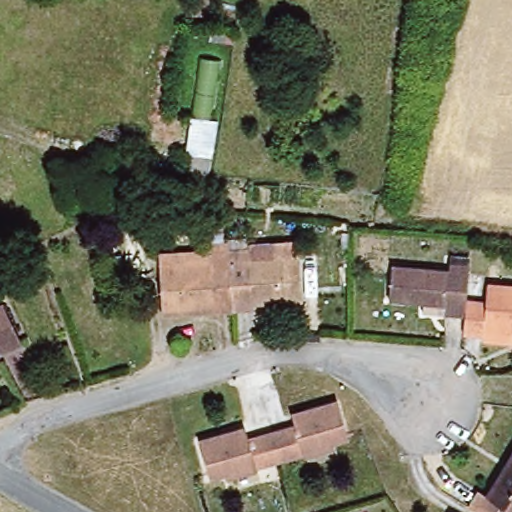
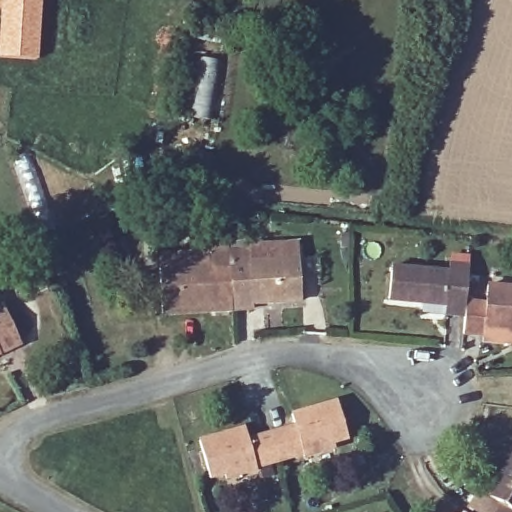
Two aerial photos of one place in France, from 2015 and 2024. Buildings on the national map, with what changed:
new [(0,0),(42,0),(38,61),(0,57),(0,5),(0,0)]
unchanged [(225,255),(230,311),(205,315),(204,307),(159,312),(154,272),(201,268),(200,253),(225,251),(225,255)]
unchanged [(225,255),(246,254),(247,263),(296,258),(300,299),(247,305),(249,310),(230,311),(225,255)]
unchanged [(462,307),(462,320),(437,320),(437,308),(378,303),(379,267),(441,271),(441,262),(465,265),(462,307)]
unchanged [(462,307),(482,306),(483,288),(512,289),(512,332),(482,330),(480,341),(461,341),(462,320),(462,307)]
unchanged [(15,343),(0,351),(0,311),(15,343)]
unchanged [(282,435),(283,439),(292,435),(288,417),(330,406),(341,442),(328,446),(328,452),(301,460),(296,457),(277,463),(270,437),(282,435)]
unchanged [(277,463),(251,471),(251,473),(222,483),(221,478),(207,481),(197,445),(240,433),(245,448),(270,437),(277,463)]
unchanged [(467,490),(475,493),(511,435),(512,435),(512,512),(469,512),(457,505),(467,490)]

